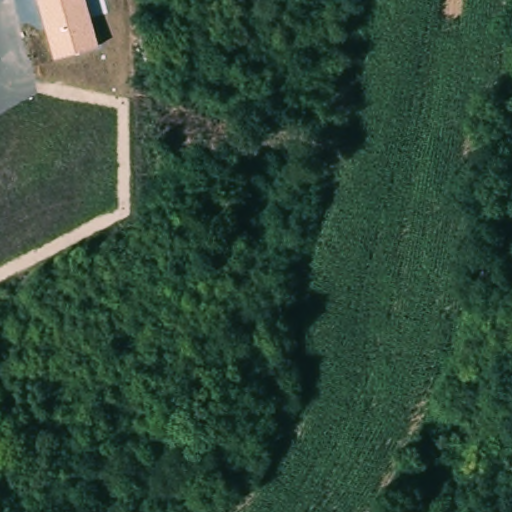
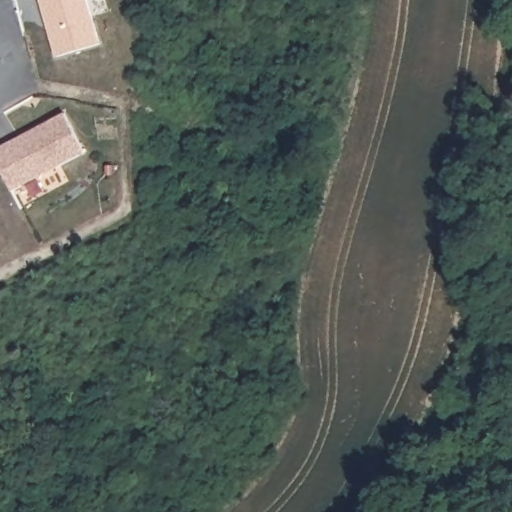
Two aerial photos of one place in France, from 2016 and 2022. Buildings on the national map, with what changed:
unchanged [(56,58),(40,0),(88,0),(101,45),(56,58)]
new [(0,148),(65,115),(86,152),(11,192),(0,170),(0,148)]

